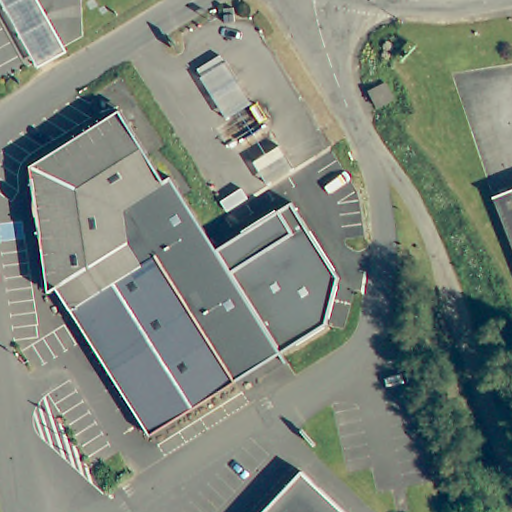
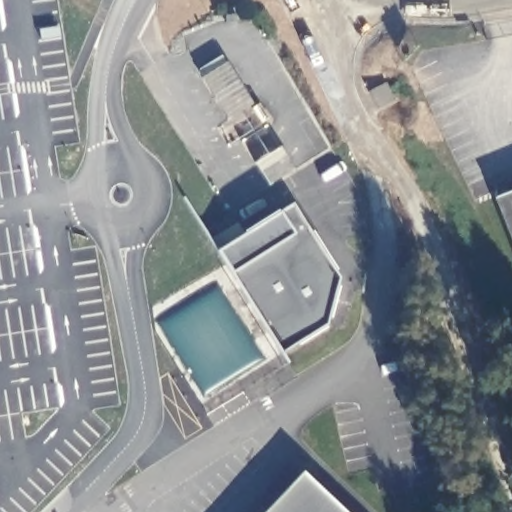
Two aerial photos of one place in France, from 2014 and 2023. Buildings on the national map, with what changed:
unchanged [(1,0),(39,0),(68,52),(39,68),(1,0)]
unchanged [(223,9),(234,7),(235,22),(225,22),(223,9)]
unchanged [(257,97),(231,114),(206,72),(232,56),(257,97)]
unchanged [(386,83),(394,99),(378,107),(370,91),(386,83)]
demolished [(71,309),(58,288),(51,292),(44,238),(41,238),(32,179),(35,179),(33,167),(122,112),(165,182),(166,183),(124,210),(130,244),(142,265),(71,309)]
unchanged [(280,146),(295,169),(269,185),(254,162),(280,146)]
demolished [(185,239),(157,255),(142,265),(130,244),(124,210),(166,183),(165,182),(172,177),(203,227),(185,239)]
unchanged [(495,197),(512,190),(512,242),(495,197)]
unchanged [(292,204),(340,277),(326,326),(282,353),(217,250),(292,204)]
demolished [(185,239),(203,227),(282,353),(236,382),(157,255),(185,239)]
demolished [(157,255),(236,382),(151,436),(71,309),(142,265),(157,255)]
unchanged [(351,512),(259,512),(302,466),(351,512)]

